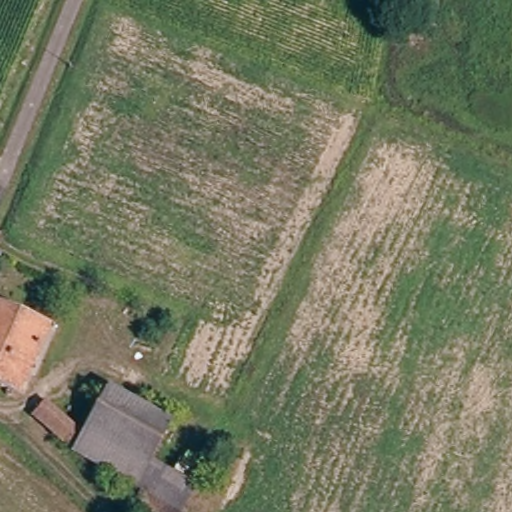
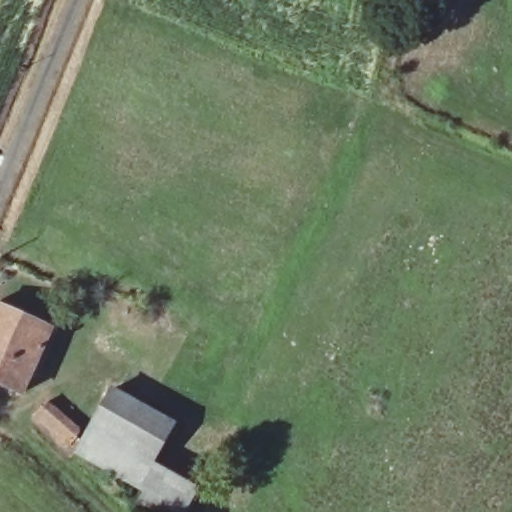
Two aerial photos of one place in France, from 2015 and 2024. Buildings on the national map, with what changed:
unchanged [(0,307),(50,331),(21,392),(0,382),(0,307)]
unchanged [(112,385),(171,418),(151,460),(193,482),(178,512),(154,512),(135,501),(145,485),(76,445),(112,385)]
unchanged [(32,410),(45,395),(79,427),(65,441),(32,410)]

